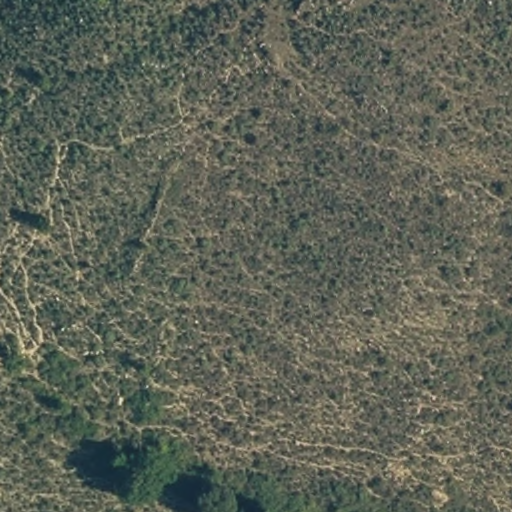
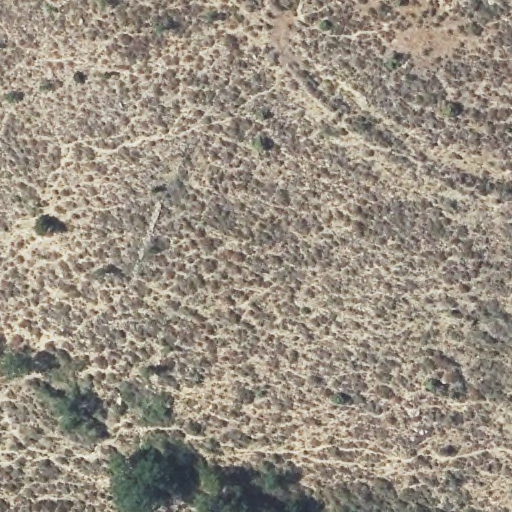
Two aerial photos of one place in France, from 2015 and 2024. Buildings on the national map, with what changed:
[]

